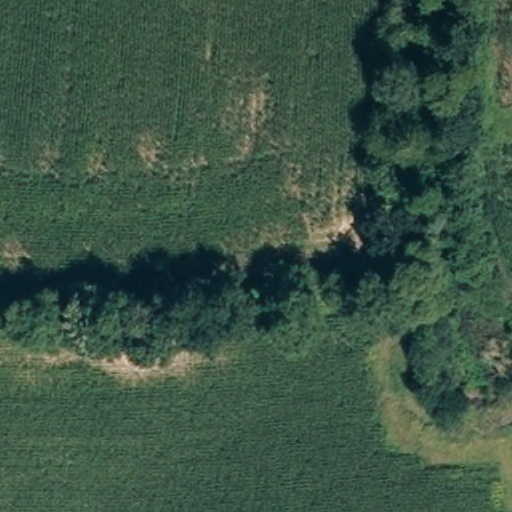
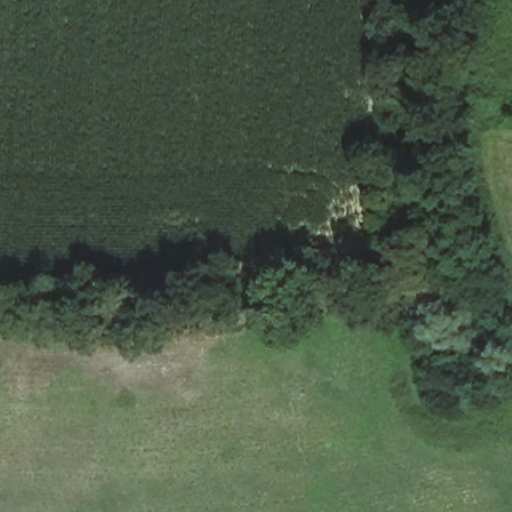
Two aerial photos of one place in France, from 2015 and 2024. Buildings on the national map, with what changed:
[]

